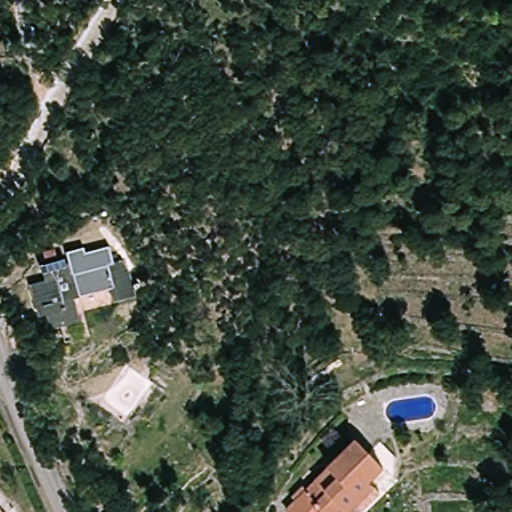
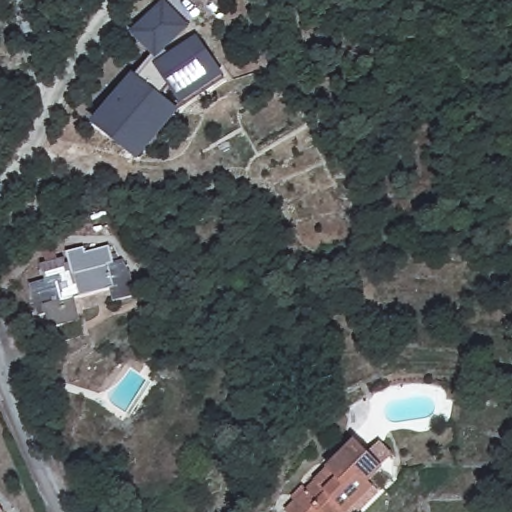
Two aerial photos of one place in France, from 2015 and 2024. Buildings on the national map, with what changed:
new [(134,73),(139,76),(154,57),(131,32),(163,0),(164,0),(192,27),(167,52),(170,55),(198,35),(227,77),(184,106),(172,89),(165,96),(182,112),(142,163),(94,124),(134,73)]
unchanged [(36,282),(52,278),(50,269),(72,263),(70,255),(88,250),(90,258),(112,252),(117,269),(123,267),(136,276),(143,300),(118,307),(115,295),(85,303),(92,325),(61,332),(58,323),(48,325),(36,282)]
unchanged [(373,495),(377,500),(362,512),(295,512),(292,508),(364,448),(390,480),(373,495)]
unchanged [(0,512),(0,505),(6,512),(0,512)]

